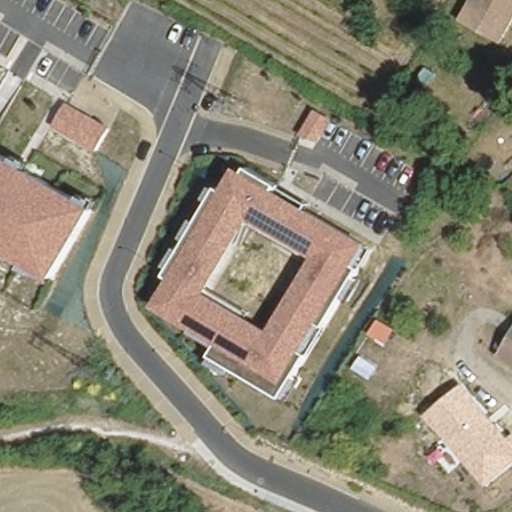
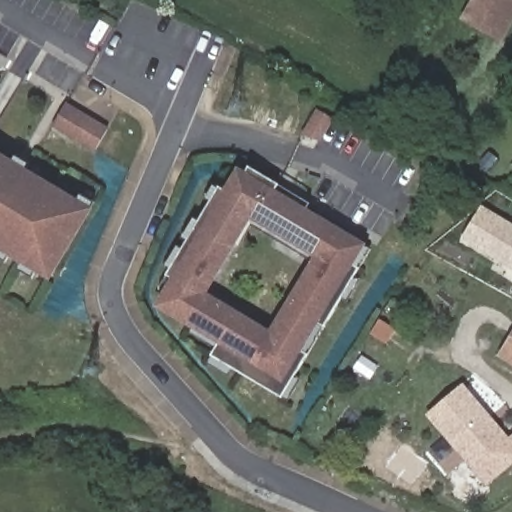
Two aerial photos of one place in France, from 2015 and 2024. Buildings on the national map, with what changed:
unchanged [(474,0),(512,0),(512,21),(500,44),(462,22),(474,0)]
unchanged [(97,152),(52,129),(66,104),(110,129),(97,152)]
unchanged [(51,282),(0,253),(0,153),(92,209),(51,282)]
unchanged [(283,398),(212,355),(217,345),(152,307),(170,281),(165,277),(219,185),(227,190),(237,167),(250,175),(253,167),(312,202),(308,211),(372,245),(283,398)]
new [(512,224),(512,271),(461,240),(471,222),(481,206),(512,224)]
unchanged [(411,438),(433,402),(443,408),(453,393),(460,398),(430,449),(411,438)]
unchanged [(457,466),(467,451),(460,447),(452,462),(430,449),(460,398),(471,406),(476,399),(477,397),(482,401),(485,395),(512,412),(512,441),(487,482),(457,466)]

